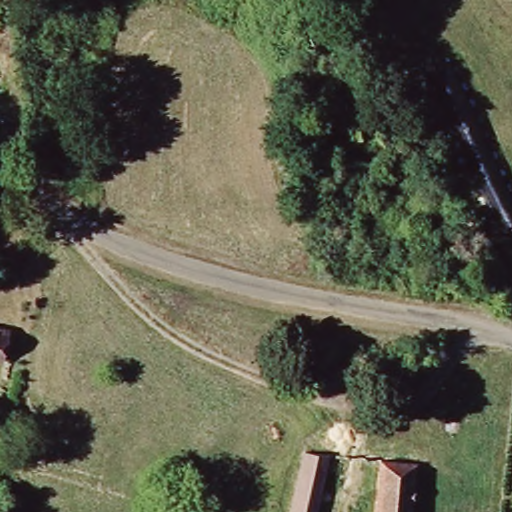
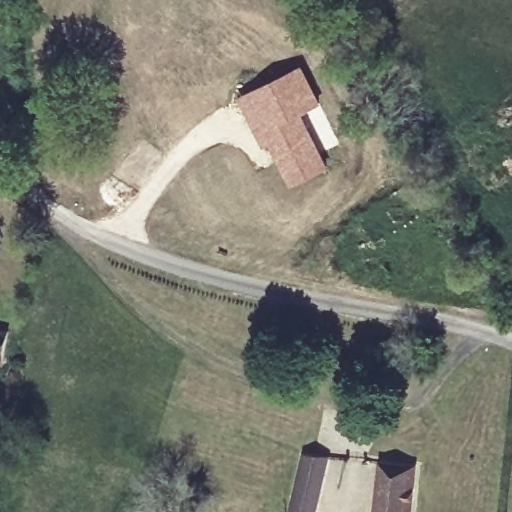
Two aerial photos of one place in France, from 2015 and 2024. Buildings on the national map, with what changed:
new [(321,153),(328,168),(291,187),(267,143),(263,146),(239,96),(301,65),(320,105),(338,144),(321,153)]
unchanged [(430,206),(383,243),(394,286),(381,290),(375,291),(373,288),(361,241),(372,238),(358,216),(411,176),(430,206)]
unchanged [(12,332),(6,365),(0,363),(0,329),(12,332)]
unchanged [(329,459),(316,512),(293,512),(306,457),(329,459)]
unchanged [(385,463),(418,467),(413,512),(379,512),(385,463)]

